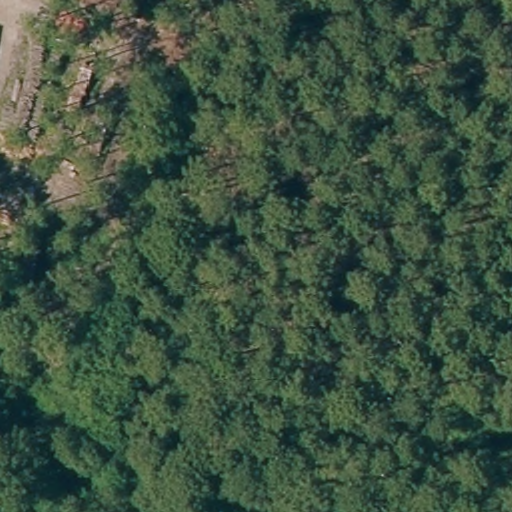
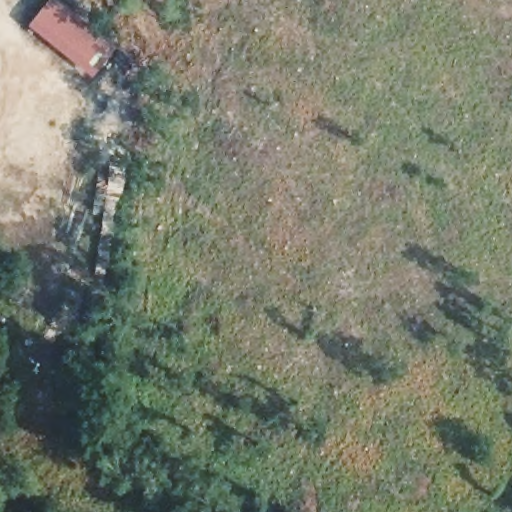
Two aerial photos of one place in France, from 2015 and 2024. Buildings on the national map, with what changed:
new [(97,69),(92,75),(29,25),(36,17),(49,0),(59,0),(117,46),(97,69)]

